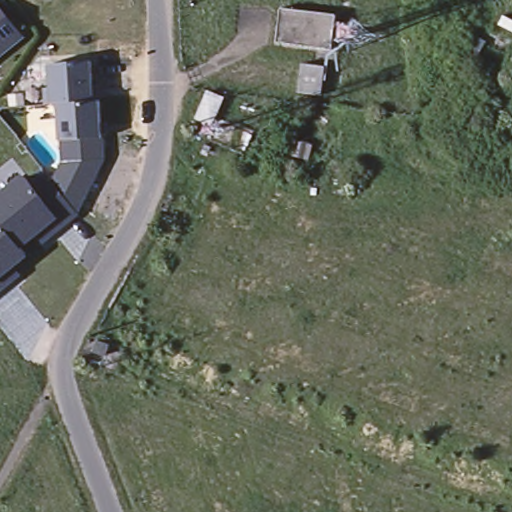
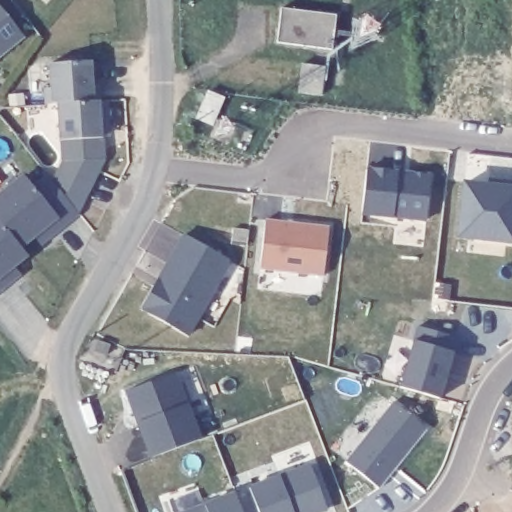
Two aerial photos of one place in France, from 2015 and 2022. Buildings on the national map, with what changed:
unchanged [(0,49),(0,7),(20,32),(0,49)]
unchanged [(332,47),(276,40),(280,7),(335,14),(332,47)]
unchanged [(43,86),(49,86),(48,63),(90,60),(92,84),(98,83),(99,99),(56,102),(44,102),(43,86)]
unchanged [(300,61),(323,64),(320,93),(297,90),(300,61)]
unchanged [(209,91),(222,97),(210,122),(198,116),(209,91)]
unchanged [(101,136),(58,139),(56,102),(99,99),(101,136)]
new [(101,136),(105,159),(76,210),(51,179),(60,162),(58,139),(101,136)]
new [(431,173),(425,222),(361,216),(366,167),(431,173)]
unchanged [(39,227),(18,244),(25,252),(3,269),(10,277),(0,285),(0,194),(23,175),(33,186),(47,175),(76,210),(45,235),(39,227)]
new [(512,188),(512,237),(512,240),(458,234),(465,182),(512,188)]
new [(265,220),(329,227),(323,277),(259,269),(265,220)]
new [(230,259),(215,288),(225,293),(208,323),(197,317),(188,332),(141,307),(183,233),(230,259)]
new [(457,337),(440,399),(398,388),(417,324),(457,337)]
new [(124,390),(175,372),(201,439),(149,457),(124,390)]
new [(426,429),(380,488),(345,461),(392,402),(426,429)]
new [(326,507),(314,512),(304,512),(304,511),(303,512),(258,512),(249,487),(310,464),(326,507)]
new [(241,512),(175,512),(234,491),(241,512)]

